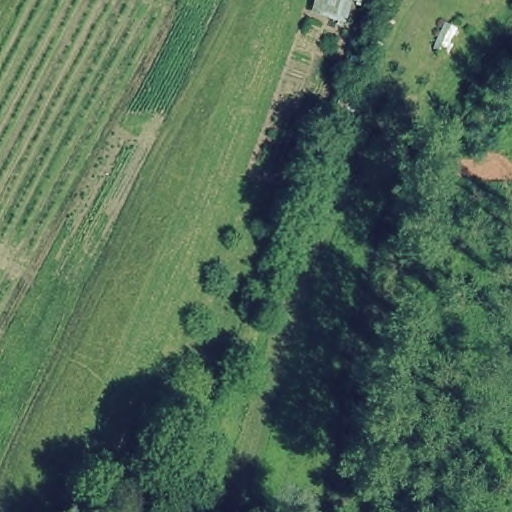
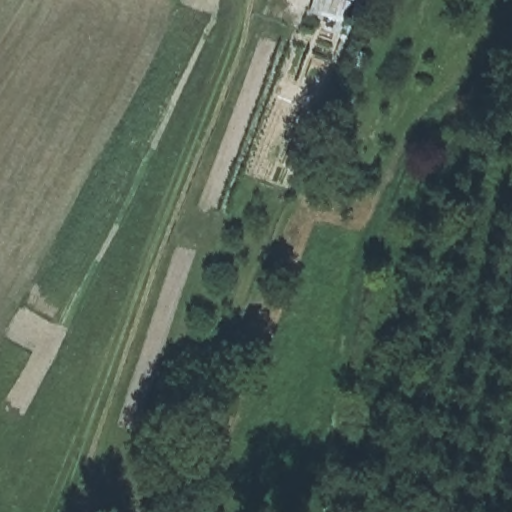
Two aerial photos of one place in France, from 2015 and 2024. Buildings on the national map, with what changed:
unchanged [(307,11),(310,0),(348,0),(342,20),(307,11)]
unchanged [(348,0),(357,0),(357,2),(348,0)]

